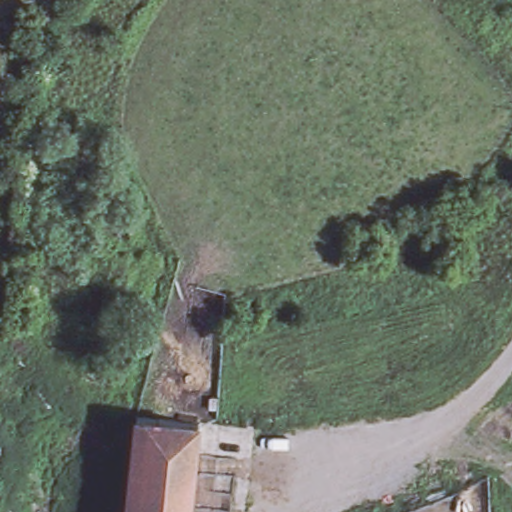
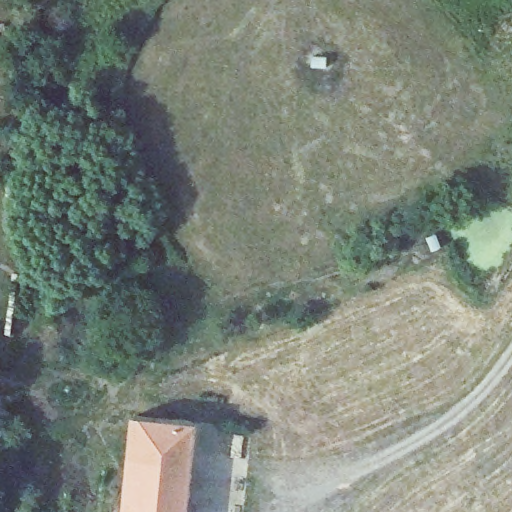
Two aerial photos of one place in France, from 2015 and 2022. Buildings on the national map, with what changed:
unchanged [(198,423),(189,512),(124,512),(135,415),(198,423)]

